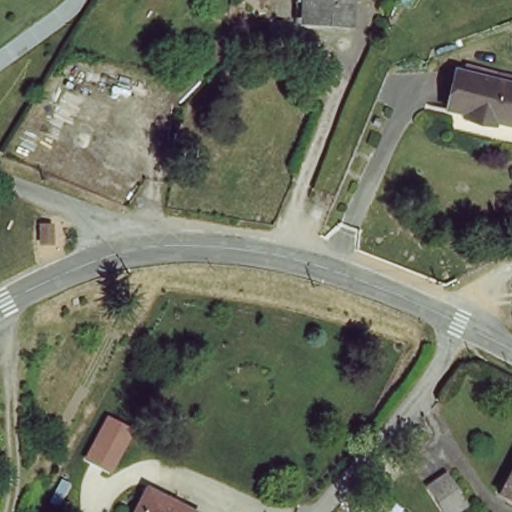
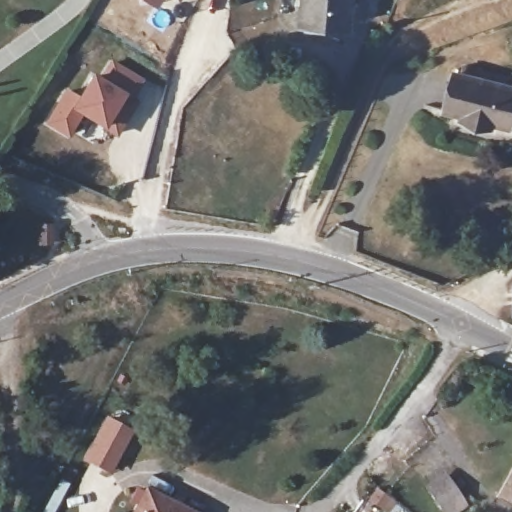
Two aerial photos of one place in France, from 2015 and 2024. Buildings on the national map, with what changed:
new [(158,6),(148,0),(162,0),(158,6)]
unchanged [(354,32),(303,30),(303,0),(355,0),(354,32)]
new [(141,81),(131,100),(137,104),(118,135),(83,115),(70,137),(50,126),(69,95),(81,102),(94,79),(103,84),(113,65),(141,81)]
unchanged [(463,74),(512,96),(512,125),(507,137),(476,124),(447,110),(463,74)]
demolished [(112,84),(108,104),(119,108),(113,130),(83,122),(53,114),(58,90),(75,95),(80,75),(112,84)]
unchanged [(85,460),(107,417),(133,431),(112,472),(85,460)]
unchanged [(464,498),(447,511),(427,485),(444,471),(464,498)]
unchanged [(189,512),(145,512),(153,494),(189,512)]
unchanged [(508,507),(512,498),(512,510),(508,507)]

